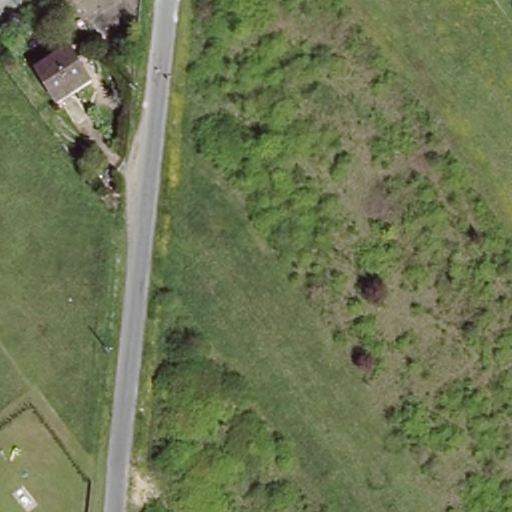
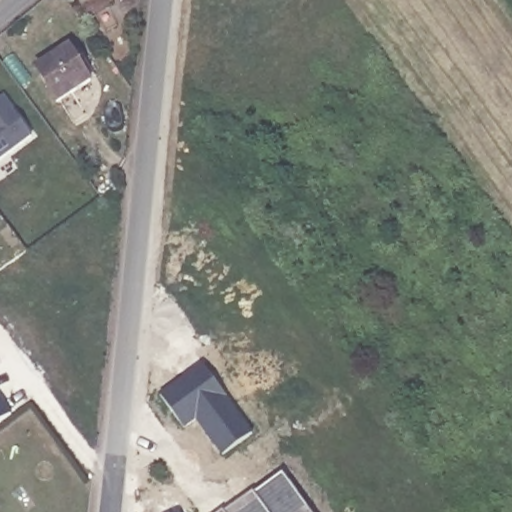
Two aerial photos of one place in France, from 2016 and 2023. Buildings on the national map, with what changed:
unchanged [(92,81),(57,102),(36,68),(71,47),(92,81)]
new [(32,136),(0,161),(0,100),(3,98),(32,136)]
new [(204,365),(227,397),(226,397),(253,433),(224,456),(197,419),(185,428),(161,396),(204,365)]
new [(0,425),(0,398),(12,415),(0,425)]
new [(255,493),(283,473),(308,506),(312,512),(244,512),(260,501),(255,493)]
new [(226,512),(221,512),(224,510),(226,512)]

